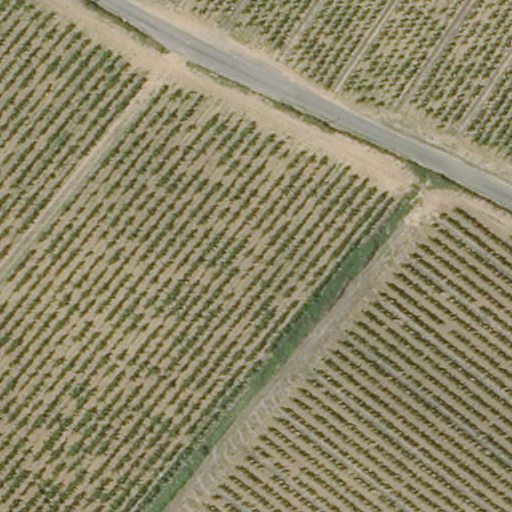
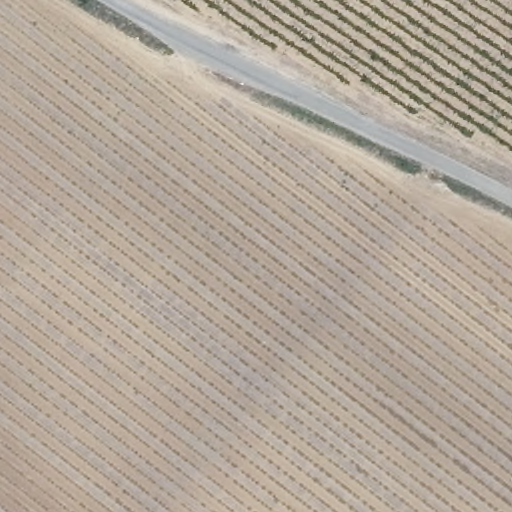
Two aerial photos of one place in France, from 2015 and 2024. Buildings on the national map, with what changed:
[]

